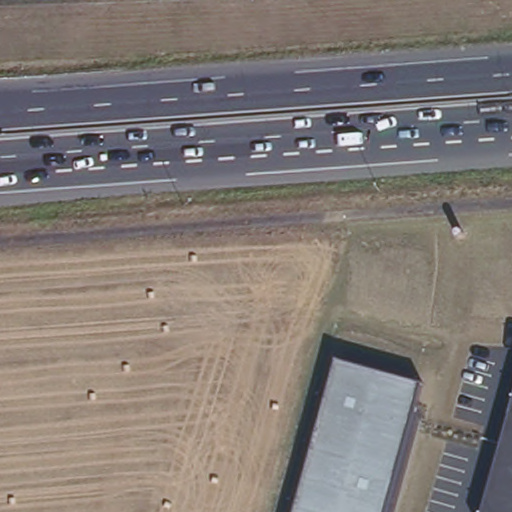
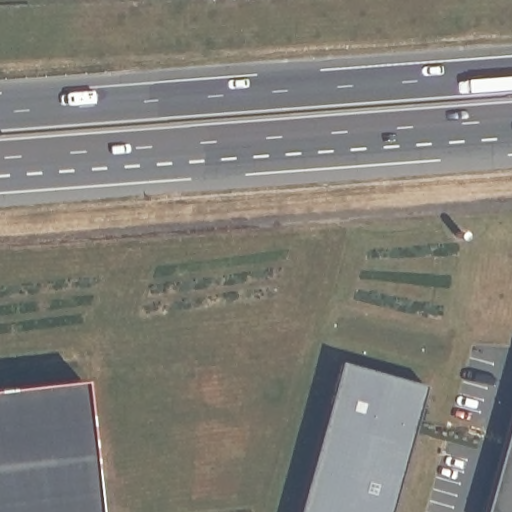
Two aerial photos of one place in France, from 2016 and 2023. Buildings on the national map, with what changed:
unchanged [(337,360),(422,386),(386,512),(296,512),(337,360)]
new [(98,512),(0,512),(0,393),(87,384),(98,512)]
unchanged [(512,446),(512,512),(493,512),(512,446)]

